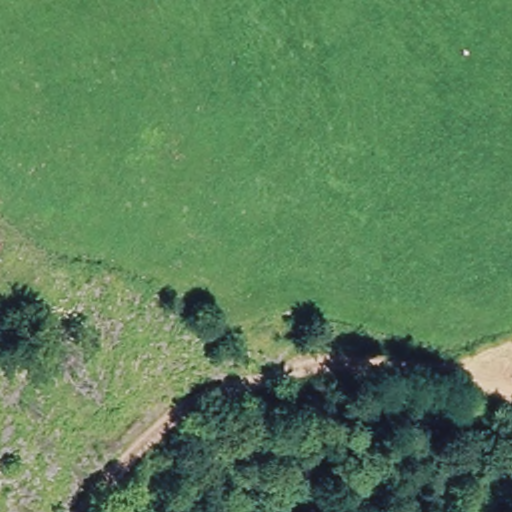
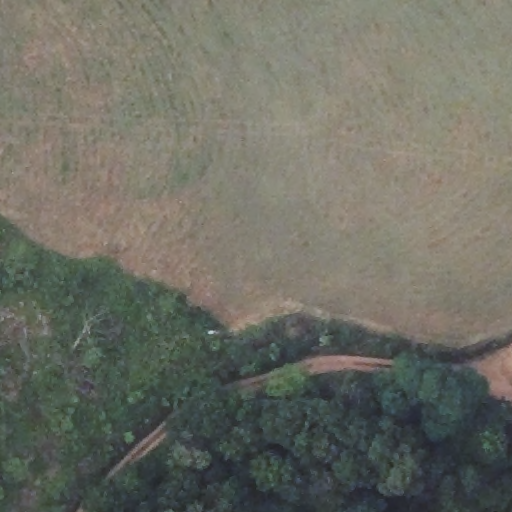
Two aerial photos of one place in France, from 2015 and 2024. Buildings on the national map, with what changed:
[]

